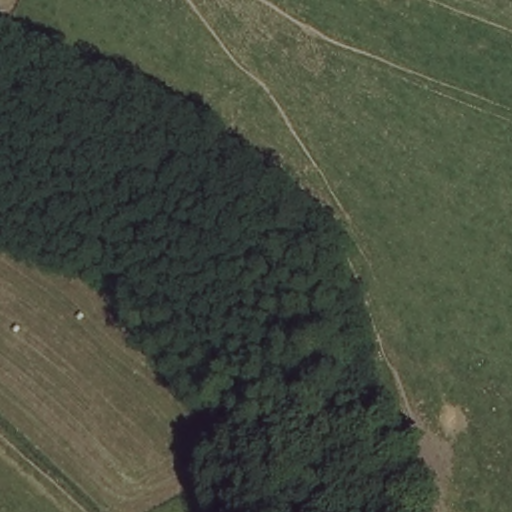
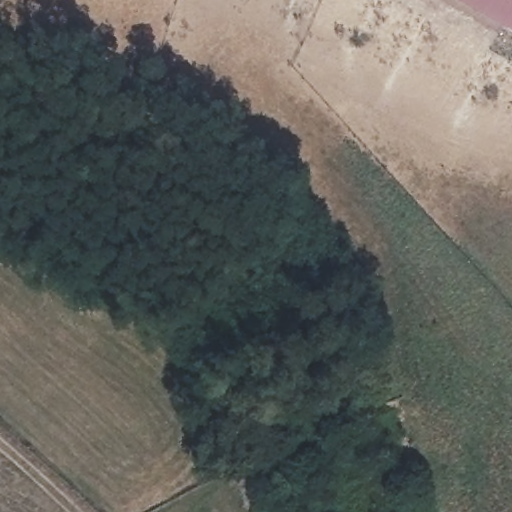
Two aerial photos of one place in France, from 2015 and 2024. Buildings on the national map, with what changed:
new [(453,0),(512,0),(512,33),(453,0)]

